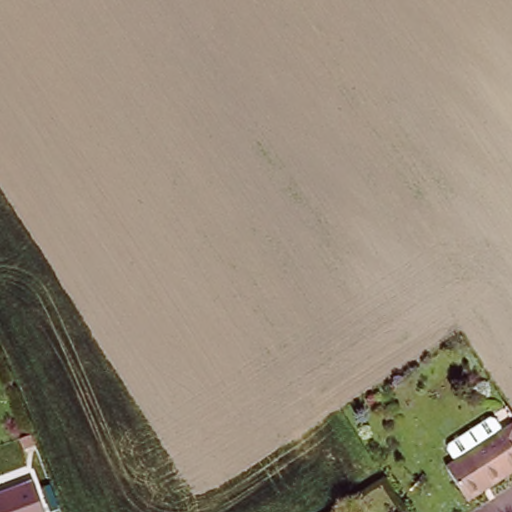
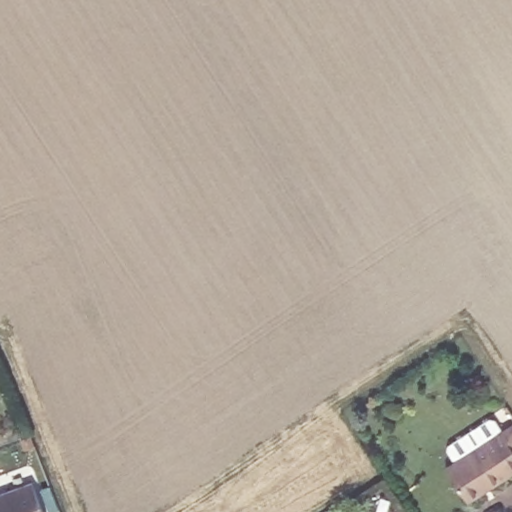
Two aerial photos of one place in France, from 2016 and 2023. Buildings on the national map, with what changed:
unchanged [(443,469),(512,426),(512,477),(466,506),(443,469)]
unchanged [(34,478),(46,512),(0,512),(0,490),(34,478)]

